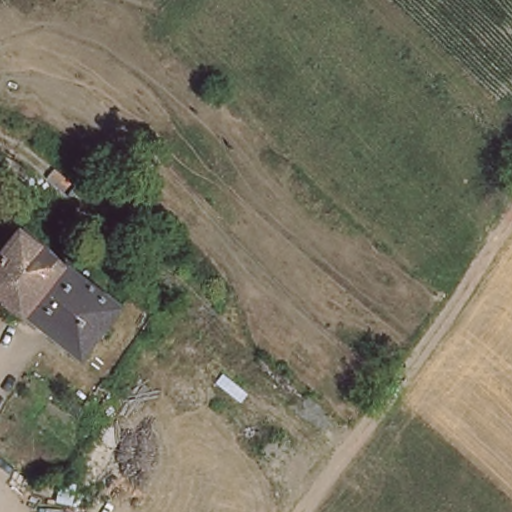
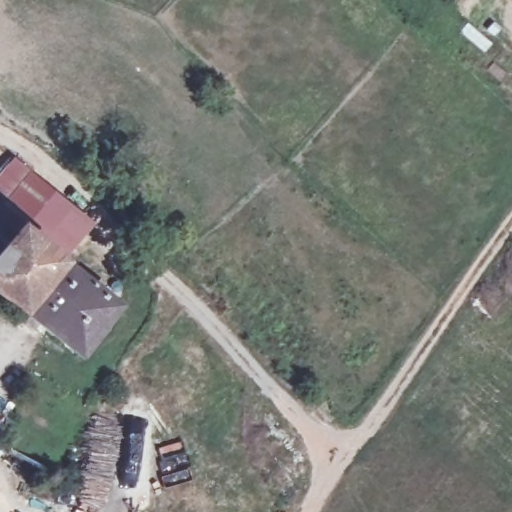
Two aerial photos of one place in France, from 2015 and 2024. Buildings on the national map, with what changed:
new [(13,155),(32,169),(31,171),(89,217),(60,249),(30,222),(0,257),(0,171),(13,155)]
unchanged [(30,222),(125,306),(80,355),(0,289),(0,257),(30,222)]

